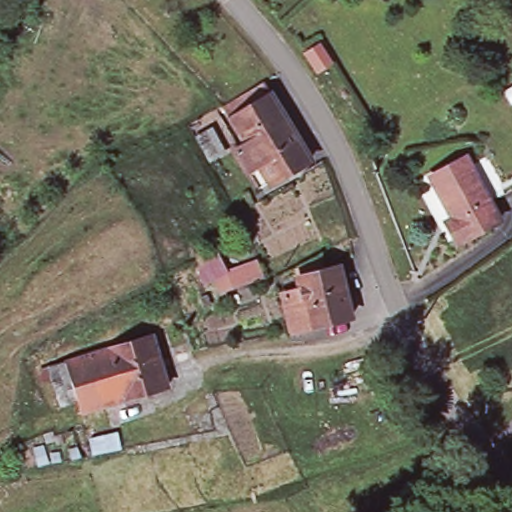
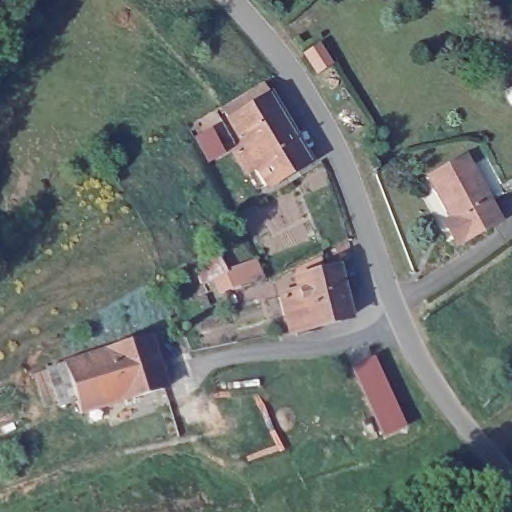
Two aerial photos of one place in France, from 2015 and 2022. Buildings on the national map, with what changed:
new [(335,61),(319,76),(304,55),(322,42),(335,61)]
unchanged [(233,153),(246,147),(234,124),(230,116),(271,89),(278,103),(309,168),(266,189),(256,171),(245,177),(233,153)]
unchanged [(209,134),(219,155),(206,161),(196,141),(209,134)]
unchanged [(467,153),(501,214),(457,238),(444,216),(451,212),(429,173),(467,153)]
unchanged [(286,325),(281,294),(299,290),(296,279),(339,269),(349,316),(306,325),(288,329),(286,325)]
unchanged [(154,340),(166,389),(124,401),(112,350),(154,340)]
unchanged [(124,401),(79,413),(74,393),(57,398),(48,366),(66,361),(112,350),(124,401)]
new [(375,355),(409,426),(386,437),(354,368),(375,355)]

